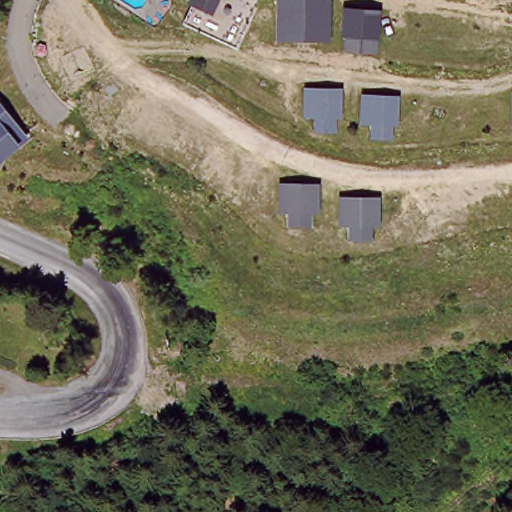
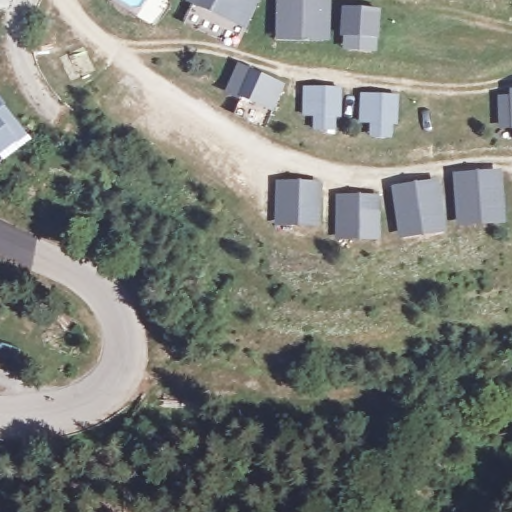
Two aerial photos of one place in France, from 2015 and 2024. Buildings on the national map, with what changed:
unchanged [(184,23),(192,5),(187,3),(188,0),(258,0),(237,49),(184,23)]
unchanged [(277,41),(277,0),(331,0),(330,41),(277,41)]
unchanged [(344,51),(345,37),(340,36),(343,8),(380,11),(377,53),(344,51)]
new [(273,115),(240,98),(239,100),(225,93),(239,64),(250,70),(287,86),(273,115)]
unchanged [(345,131),(315,137),(313,122),(304,123),(305,92),(342,89),(345,131)]
unchanged [(512,90),(512,111),(511,90),(512,90)]
unchanged [(400,138),(370,141),(370,128),(360,128),(358,99),(402,98),(400,138)]
unchanged [(30,144),(0,167),(0,107),(30,144)]
new [(505,225),(457,228),(454,177),(502,173),(505,225)]
new [(447,235),(399,241),(392,187),(439,181),(447,235)]
unchanged [(314,211),(315,221),(289,225),(287,212),(279,213),(280,186),(317,185),(314,211)]
unchanged [(379,236),(349,241),(348,230),(339,231),(337,200),(377,199),(379,236)]

